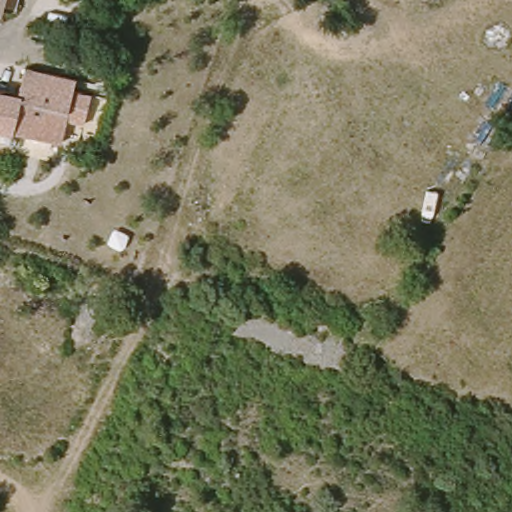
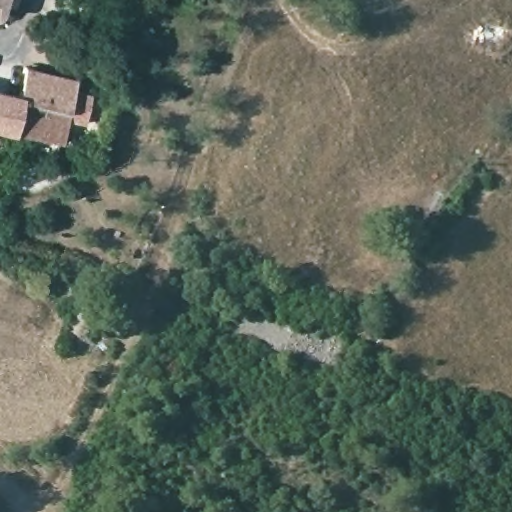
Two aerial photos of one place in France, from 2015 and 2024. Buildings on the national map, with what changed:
unchanged [(0,0),(1,0),(0,3),(0,0)]
unchanged [(86,79),(84,90),(90,91),(85,112),(68,109),(60,140),(51,139),(40,136),(28,134),(25,132),(0,127),(0,87),(16,90),(21,65),(86,79)]

